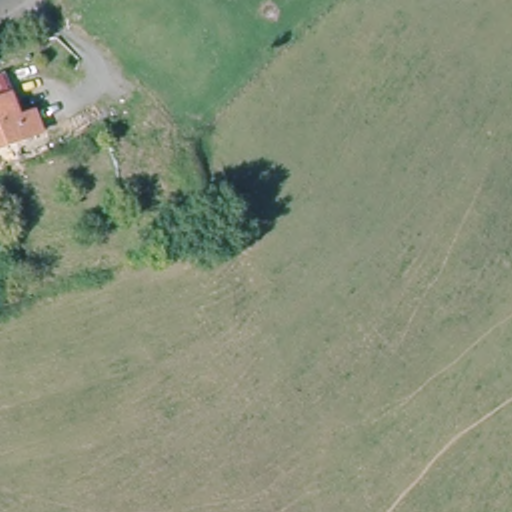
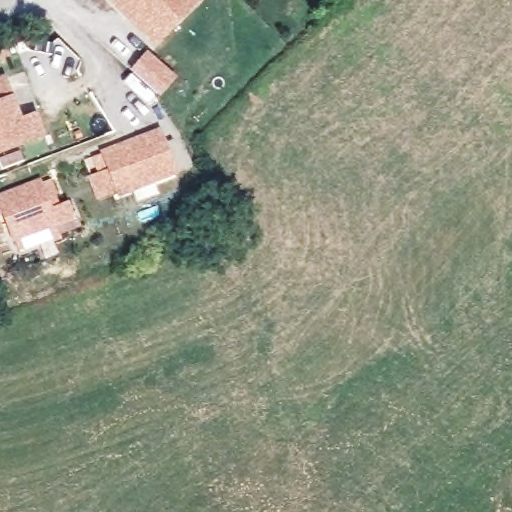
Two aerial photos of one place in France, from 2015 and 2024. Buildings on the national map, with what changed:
new [(152,39),(128,15),(122,9),(114,0),(192,0),(184,8),(167,24),(152,39)]
new [(145,54),(169,75),(154,91),(130,70),(145,54)]
unchanged [(0,147),(0,79),(2,79),(17,117),(34,111),(43,132),(0,147)]
new [(178,174),(117,196),(115,193),(97,201),(87,176),(96,172),(89,156),(159,127),(178,174)]
new [(41,182),(51,179),(57,194),(49,197),(51,206),(68,200),(76,220),(56,227),(60,240),(20,256),(0,206),(0,193),(40,177),(41,182)]

